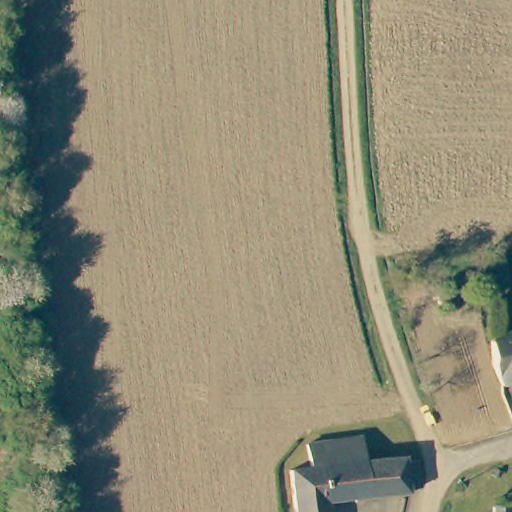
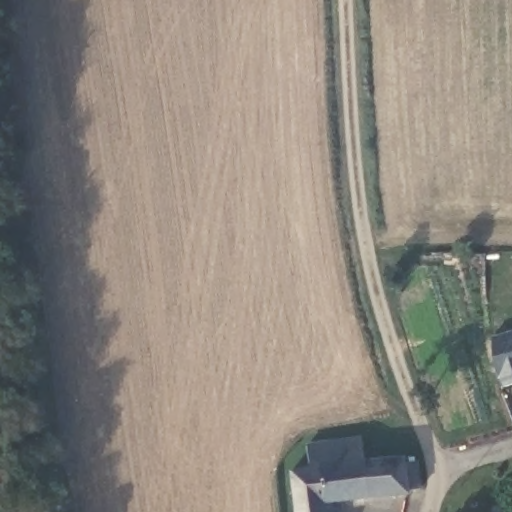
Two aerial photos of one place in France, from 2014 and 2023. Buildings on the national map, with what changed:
unchanged [(489,335),(512,331),(512,382),(496,384),(489,335)]
unchanged [(293,488),(292,476),(295,475),(311,473),(310,462),(363,457),(364,467),(390,463),(402,467),(403,468),(405,468),(411,467),(416,467),(416,468),(420,492),(408,494),(408,497),(330,507),(295,512),(293,488)]
unchanged [(331,512),(295,512),(330,507),(331,512)]
unchanged [(508,508),(508,512),(493,512),(493,507),(508,508)]

